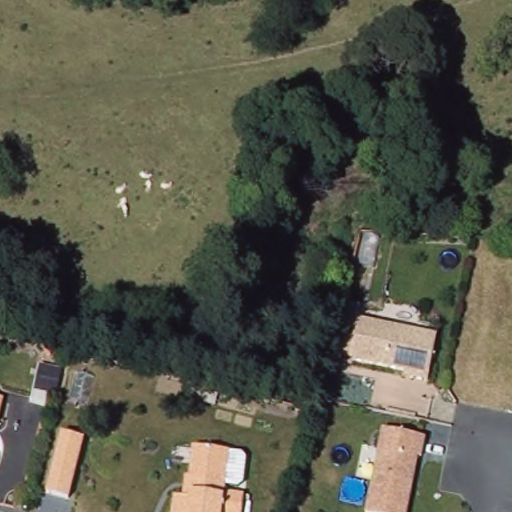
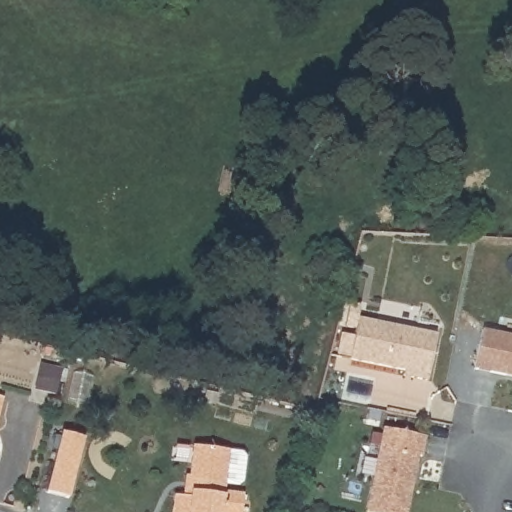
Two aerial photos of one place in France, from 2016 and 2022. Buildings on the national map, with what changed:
unchanged [(357,317),(436,333),(427,380),(410,377),(411,371),(349,358),(357,317)]
new [(512,336),(512,377),(474,370),(482,331),(512,336)]
unchanged [(2,400),(0,410),(0,399),(2,400)]
unchanged [(382,427),(424,436),(420,455),(417,455),(405,512),(370,512),(365,511),(382,427)]
unchanged [(85,437),(71,497),(47,491),(63,431),(85,437)]
unchanged [(182,493),(182,483),(192,483),(196,443),(228,447),(223,488),(246,491),(244,512),(170,512),(171,492),(182,493)]

